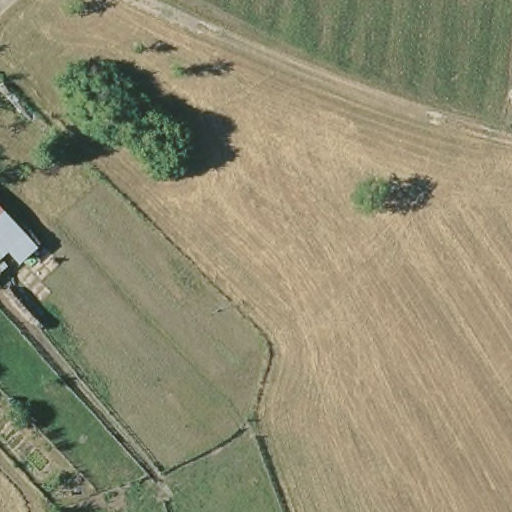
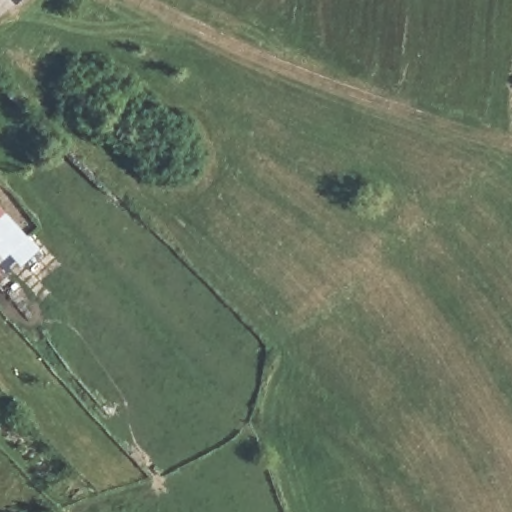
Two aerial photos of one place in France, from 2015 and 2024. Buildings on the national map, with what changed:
unchanged [(30,235),(6,259),(16,270),(0,284),(0,203),(30,235)]

